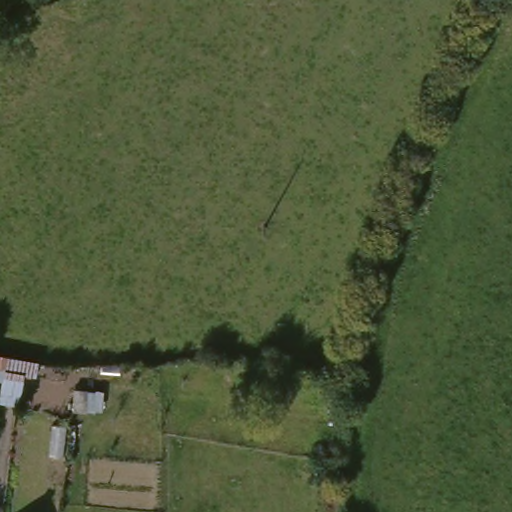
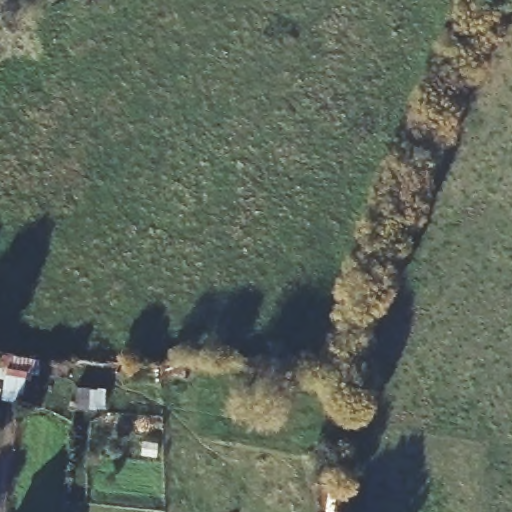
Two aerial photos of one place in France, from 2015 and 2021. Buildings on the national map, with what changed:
unchanged [(54,359),(51,378),(34,374),(31,399),(0,395),(0,351),(54,359)]

